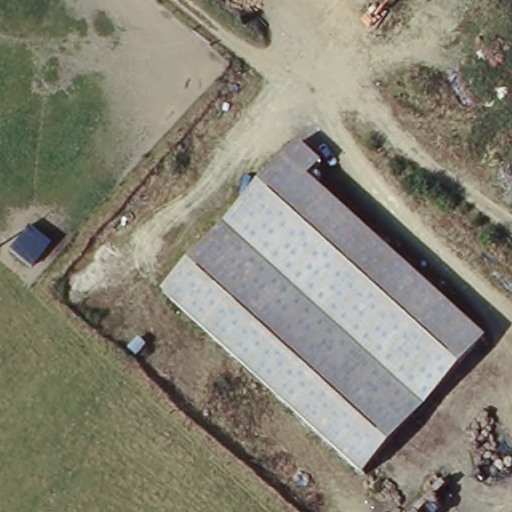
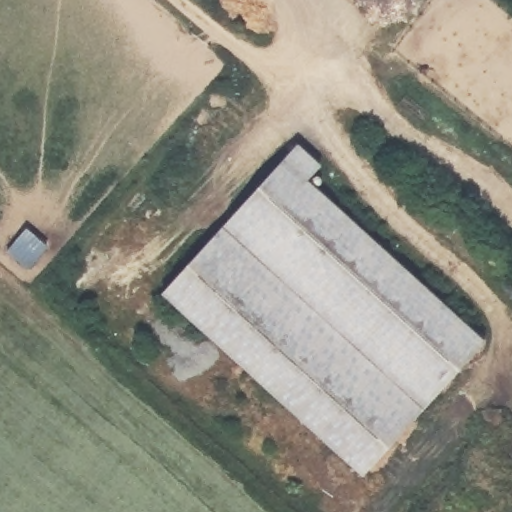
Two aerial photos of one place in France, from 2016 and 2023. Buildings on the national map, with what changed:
unchanged [(298,142),(322,162),(308,179),(487,340),(365,475),(162,293),(298,142)]

